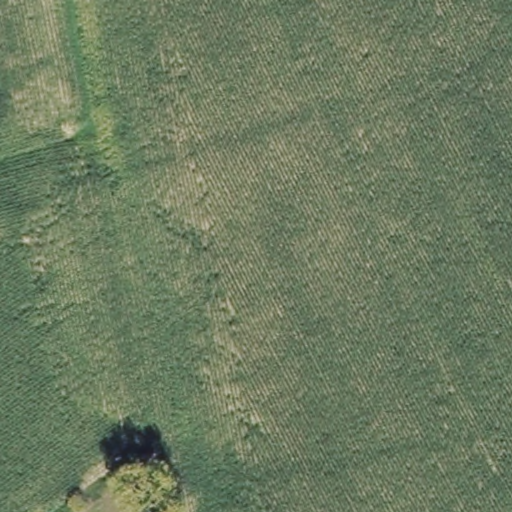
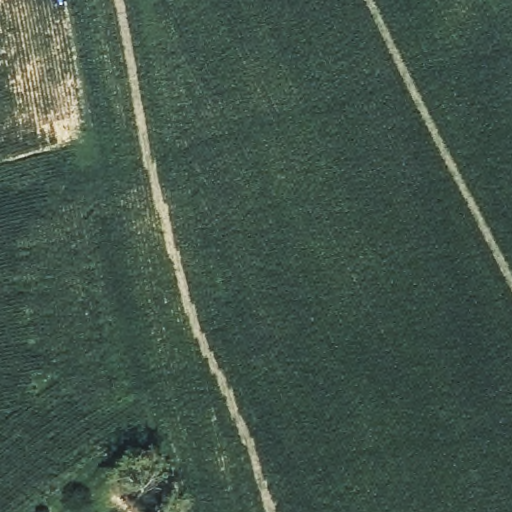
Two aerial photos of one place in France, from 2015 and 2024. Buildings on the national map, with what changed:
unchanged [(170,502),(150,505),(146,472),(165,470),(170,502)]

